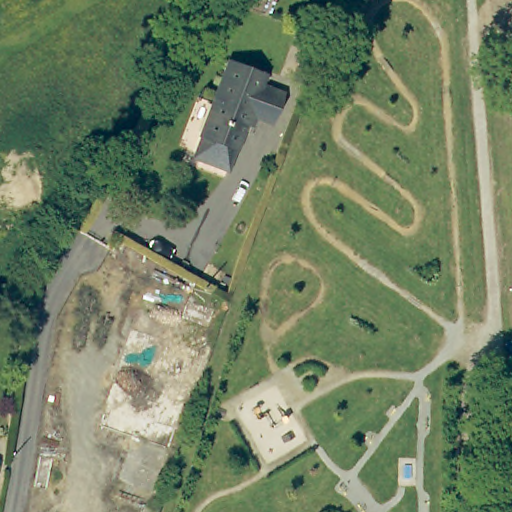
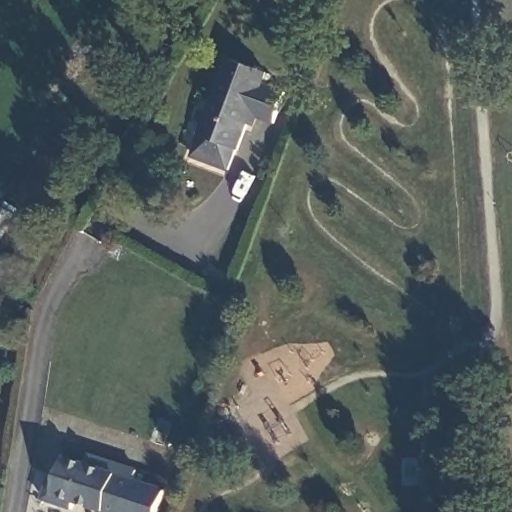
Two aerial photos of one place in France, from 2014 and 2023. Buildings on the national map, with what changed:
unchanged [(311,35),(296,76),(284,72),(298,30),(311,35)]
unchanged [(262,71),(258,82),(281,92),(271,121),(242,111),(238,120),(244,122),(225,170),(189,156),(197,136),(195,136),(223,57),(262,71)]
new [(51,475),(60,477),(68,458),(85,463),(87,453),(137,468),(134,477),(169,489),(161,512),(98,512),(72,503),(70,510),(41,500),(51,475)]

